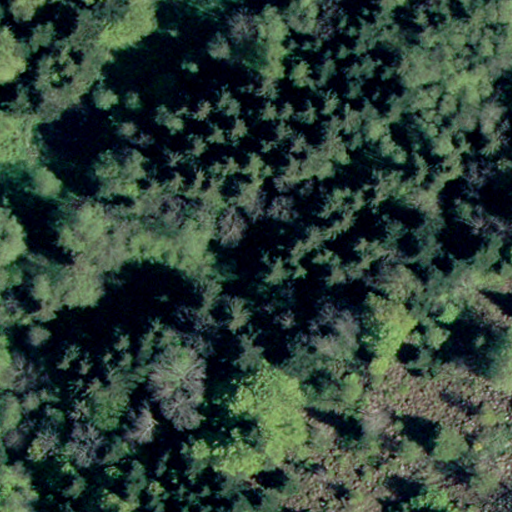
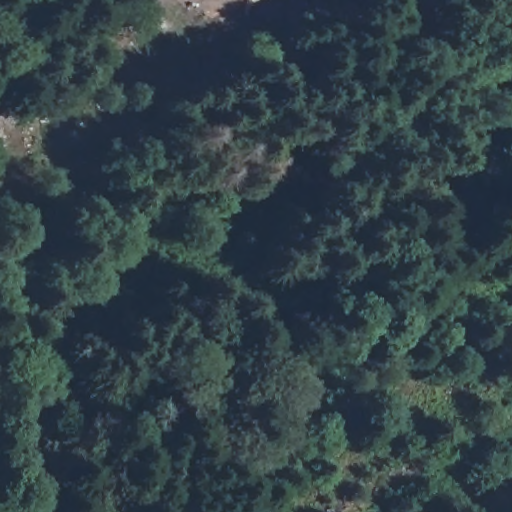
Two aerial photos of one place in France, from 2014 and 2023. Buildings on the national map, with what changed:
[]

